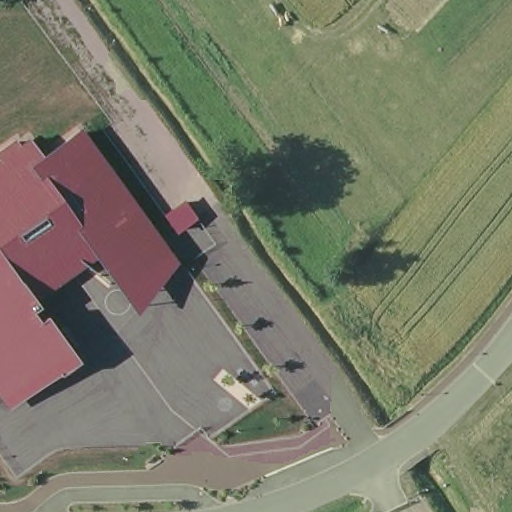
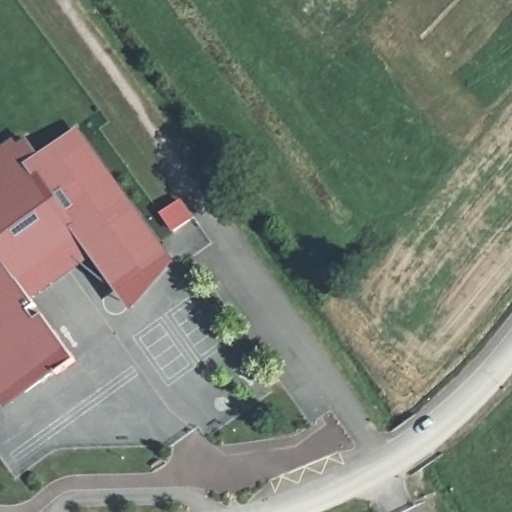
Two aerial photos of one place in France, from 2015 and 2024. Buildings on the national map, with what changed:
unchanged [(0,402),(0,146),(18,132),(23,138),(33,131),(44,145),(81,119),(178,259),(134,315),(96,257),(39,297),(85,359),(8,414),(0,402)]

